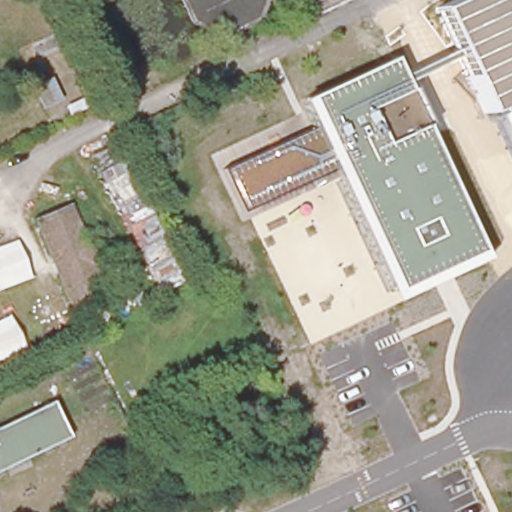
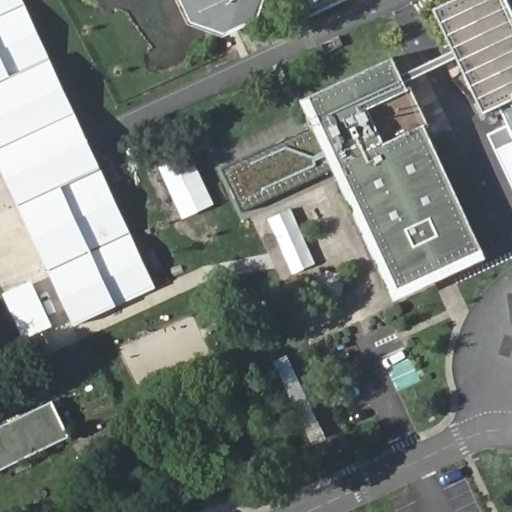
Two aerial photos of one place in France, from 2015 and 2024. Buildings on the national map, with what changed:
new [(0,164),(0,0),(22,0),(25,5),(38,31),(51,60),(63,85),(75,113),(88,140),(100,166),(116,200),(131,232),(144,260),(156,287),(116,306),(75,325),(62,297),(50,270),(34,237),(19,205),(6,178),(0,164)]
unchanged [(219,38),(190,28),(176,0),(257,0),(251,22),(219,38)]
unchanged [(298,0),(354,0),(308,21),(298,0)]
unchanged [(512,0),(512,127),(498,99),(481,105),(430,2),(434,0),(512,0)]
unchanged [(407,92),(324,130),(311,97),(392,60),(410,91),(407,92)]
unchanged [(244,198),(233,170),(306,137),(324,130),(410,91),(426,125),(342,165),(312,179),(266,201),(251,210),(244,198)]
unchanged [(483,251),(401,290),(342,165),(426,125),(483,251)]
demolished [(123,160),(185,276),(159,289),(96,171),(123,160)]
new [(269,220),(292,210),(316,264),(293,274),(269,220)]
demolished [(29,276),(0,287),(0,246),(14,240),(29,276)]
new [(3,293),(32,280),(53,326),(24,339),(3,293)]
demolished [(0,319),(11,313),(28,350),(0,363),(0,319)]
unchanged [(0,427),(53,402),(69,436),(0,470),(0,427)]

